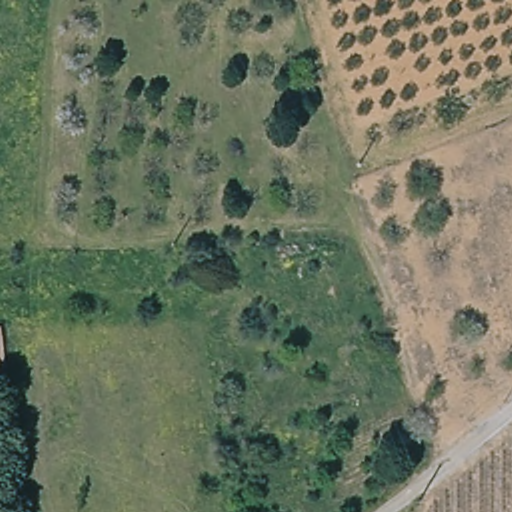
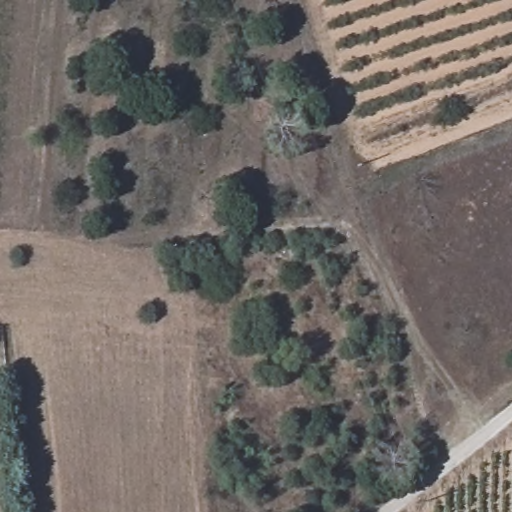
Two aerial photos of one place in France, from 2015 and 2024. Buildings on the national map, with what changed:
[]

